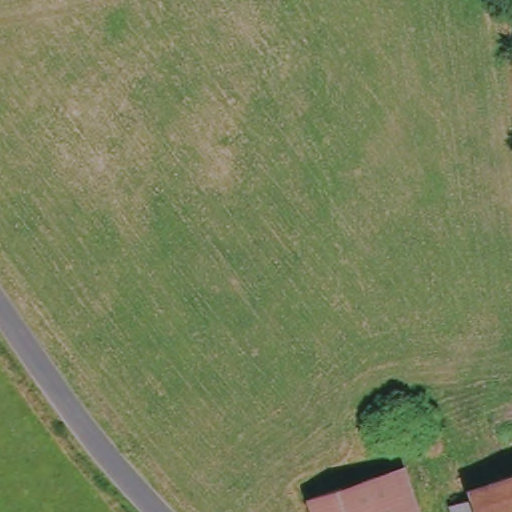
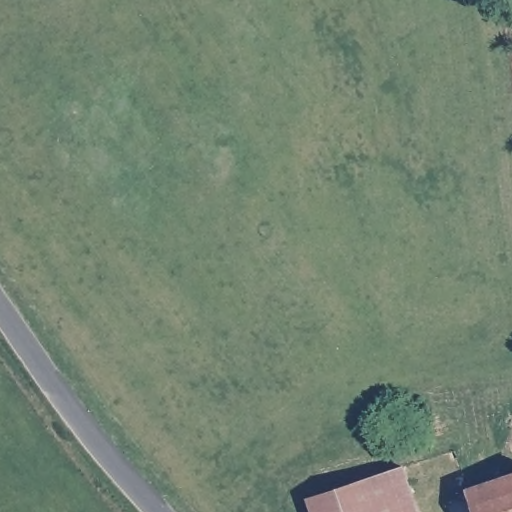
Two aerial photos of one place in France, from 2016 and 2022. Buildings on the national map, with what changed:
unchanged [(405,467),(420,512),(312,512),(308,500),(405,467)]
unchanged [(454,512),(453,507),(470,501),(465,486),(512,471),(512,512),(454,512)]

